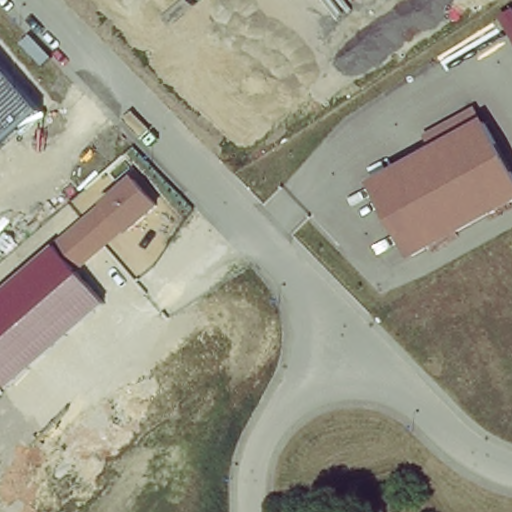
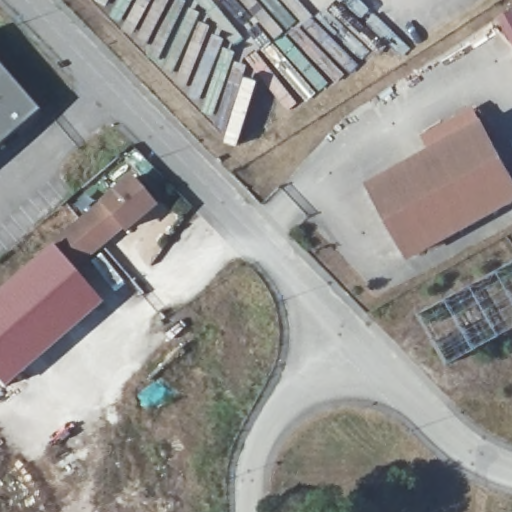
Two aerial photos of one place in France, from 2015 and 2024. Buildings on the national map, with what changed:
unchanged [(0,145),(0,67),(39,111),(0,145)]
unchanged [(433,147),(427,136),(477,109),(512,173),(512,203),(410,259),(370,183),(433,147)]
unchanged [(131,175),(158,206),(76,274),(53,245),(131,175)]
unchanged [(5,389),(0,383),(0,291),(53,245),(101,305),(5,389)]
new [(512,262),(512,329),(453,362),(424,311),(512,262)]

